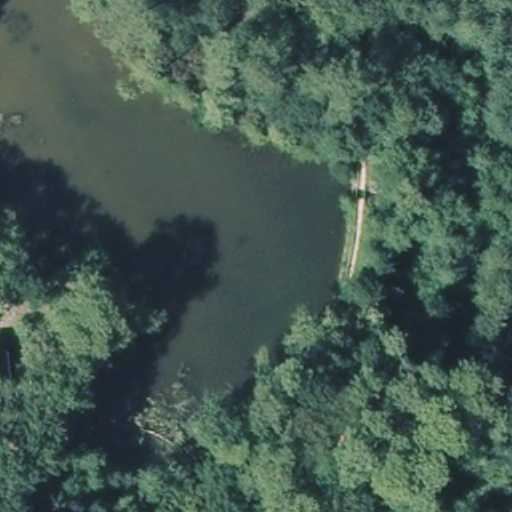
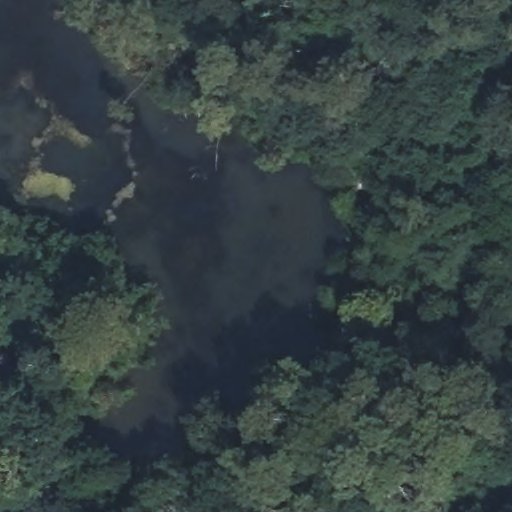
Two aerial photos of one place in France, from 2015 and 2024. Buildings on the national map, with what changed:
unchanged [(8,441),(0,442),(0,363),(8,441)]

